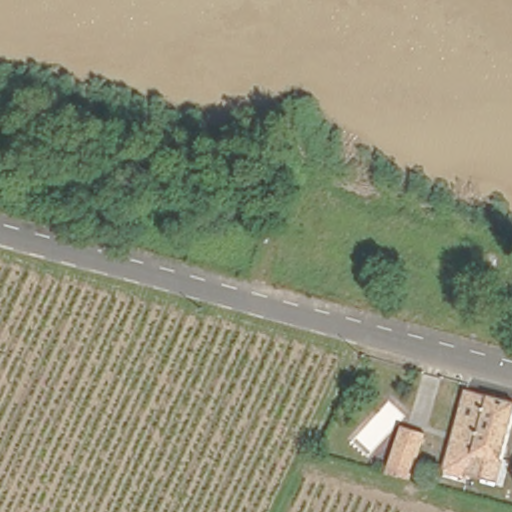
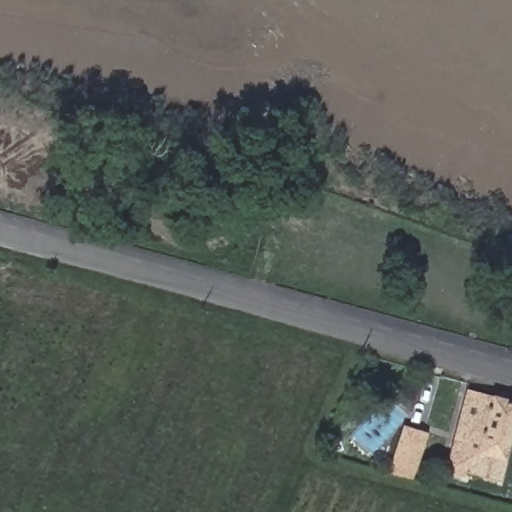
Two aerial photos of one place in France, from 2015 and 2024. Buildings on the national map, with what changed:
unchanged [(492,477),(467,470),(472,449),(448,442),(462,391),(512,403),(512,405),(492,477)]
unchanged [(416,468),(392,460),(402,425),(427,433),(416,468)]

